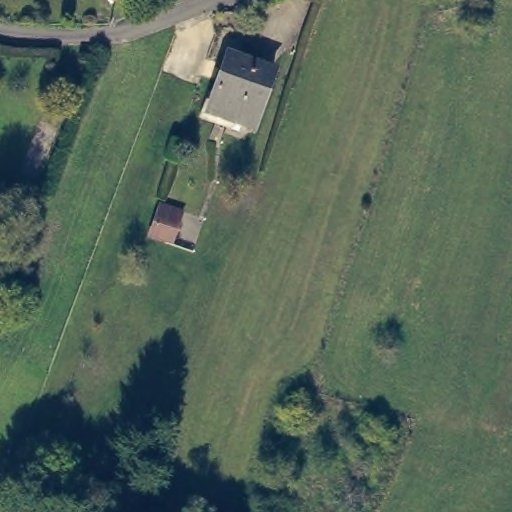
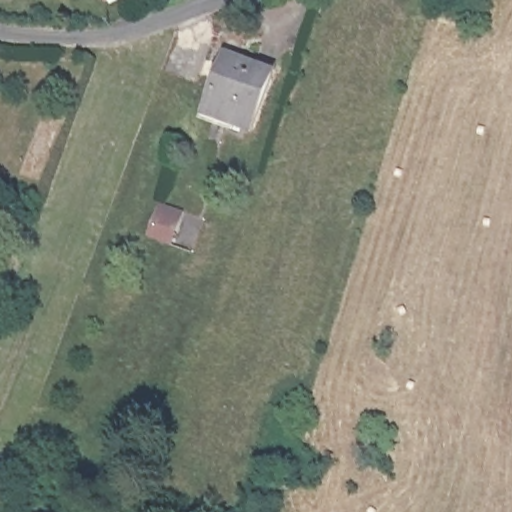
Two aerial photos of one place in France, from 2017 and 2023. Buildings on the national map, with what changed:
unchanged [(257,126),(212,110),(225,71),(231,52),(238,54),(277,67),(257,126)]
unchanged [(159,205),(175,210),(173,217),(167,237),(150,231),(156,212),(159,205)]

